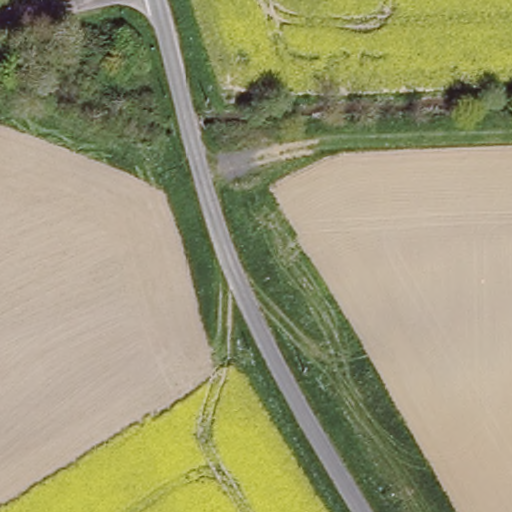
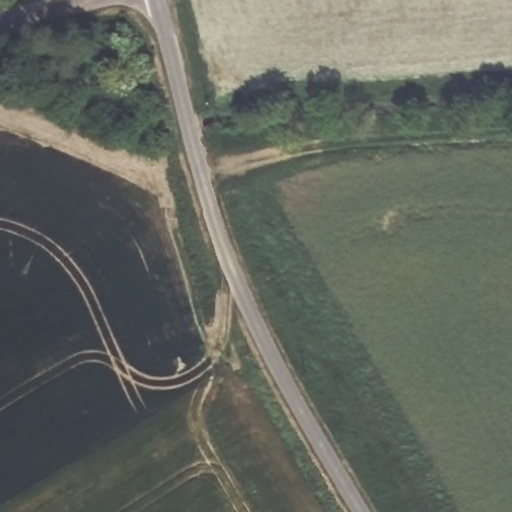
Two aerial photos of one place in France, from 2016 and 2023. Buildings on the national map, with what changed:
[]

